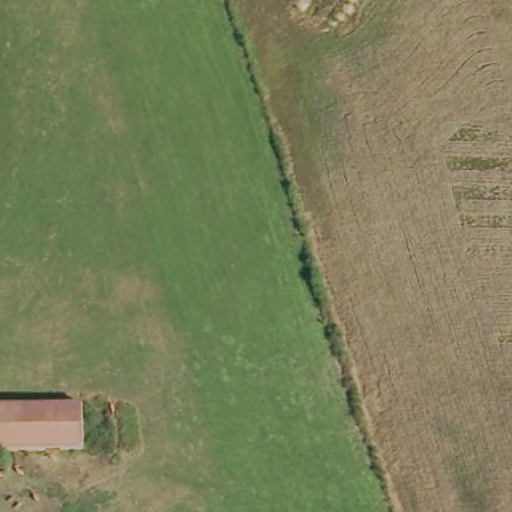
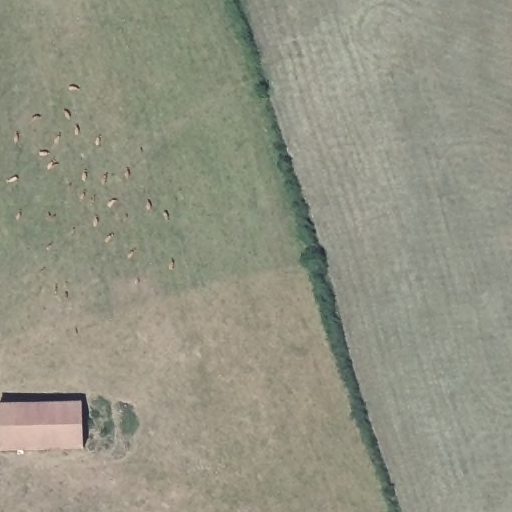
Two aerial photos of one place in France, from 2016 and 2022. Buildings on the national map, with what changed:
unchanged [(0,450),(0,440),(2,409),(85,409),(87,451),(0,450)]

